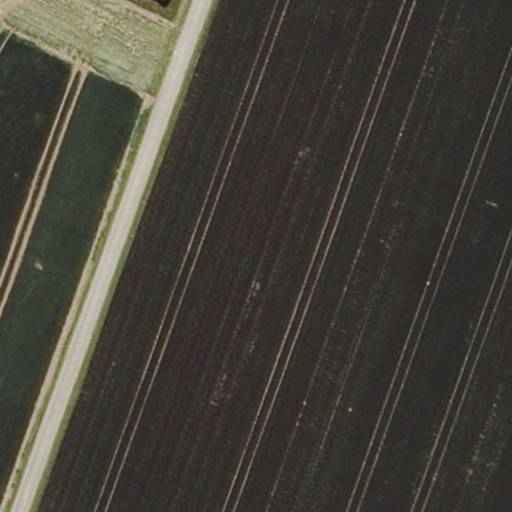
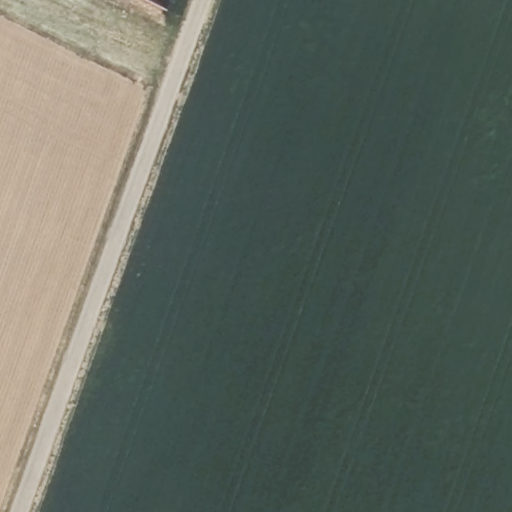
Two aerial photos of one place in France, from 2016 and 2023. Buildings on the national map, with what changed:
[]

